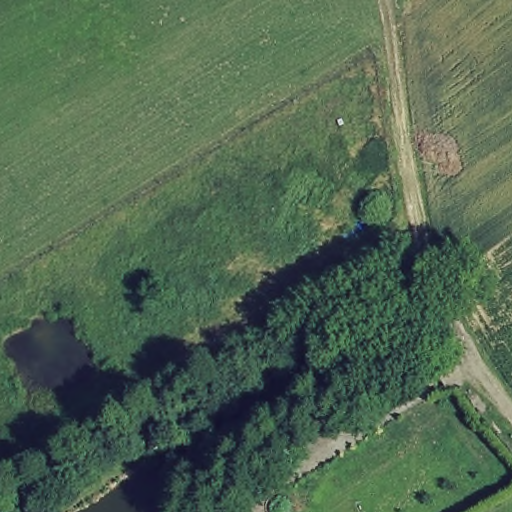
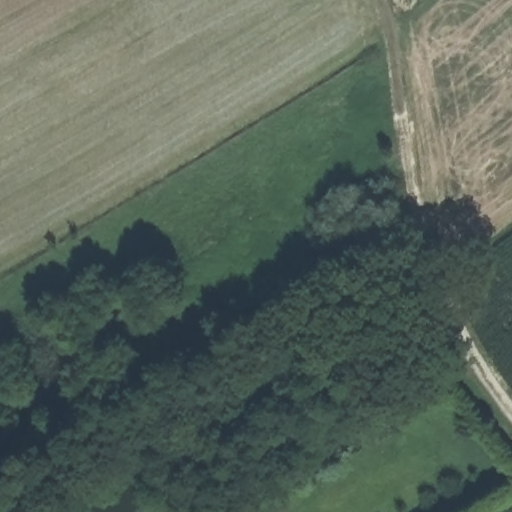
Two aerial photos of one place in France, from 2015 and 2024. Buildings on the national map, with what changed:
unchanged [(137,422),(163,409),(176,436),(149,449),(137,422)]

